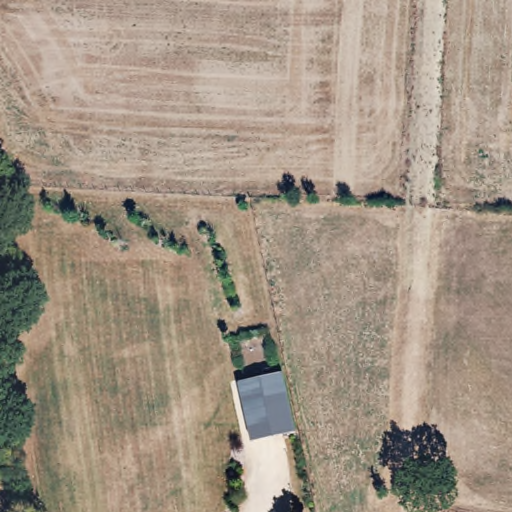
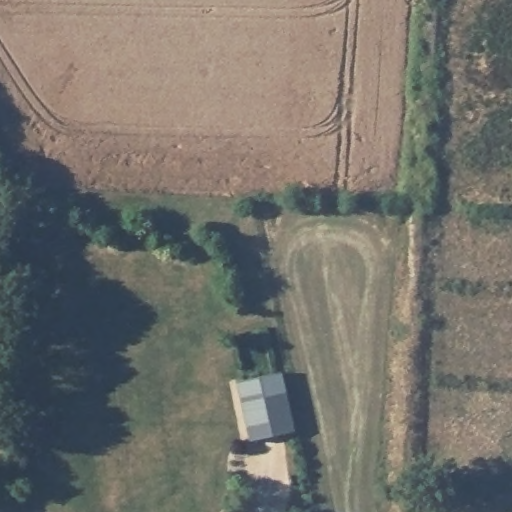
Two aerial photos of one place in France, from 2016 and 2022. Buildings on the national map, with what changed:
unchanged [(284,372),(295,433),(249,442),(237,381),(284,372)]

